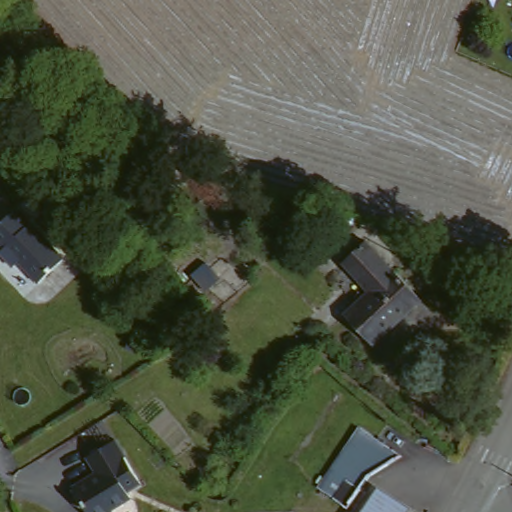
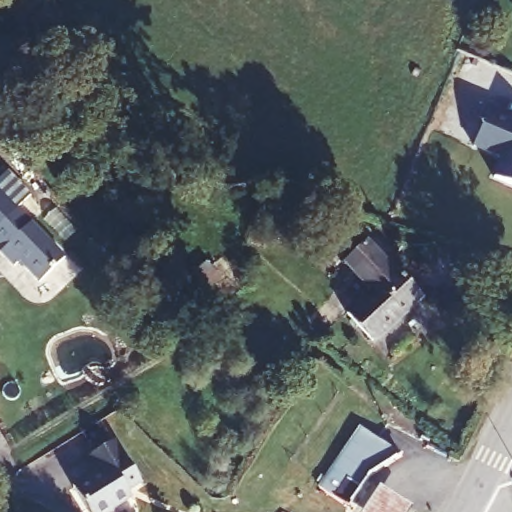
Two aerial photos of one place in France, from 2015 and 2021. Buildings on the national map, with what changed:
new [(496,107),(512,115),(512,183),(494,175),(503,155),(479,144),(496,107)]
unchanged [(43,280),(0,238),(0,180),(73,252),(43,280)]
unchanged [(425,296),(384,340),(353,310),(372,287),(347,265),(367,243),(425,296)]
unchanged [(359,427),(399,451),(368,473),(349,505),(320,488),(359,427)]
unchanged [(111,512),(90,512),(75,488),(98,470),(89,454),(115,438),(144,481),(111,512)]
unchanged [(408,512),(360,512),(378,485),(412,505),(408,512)]

